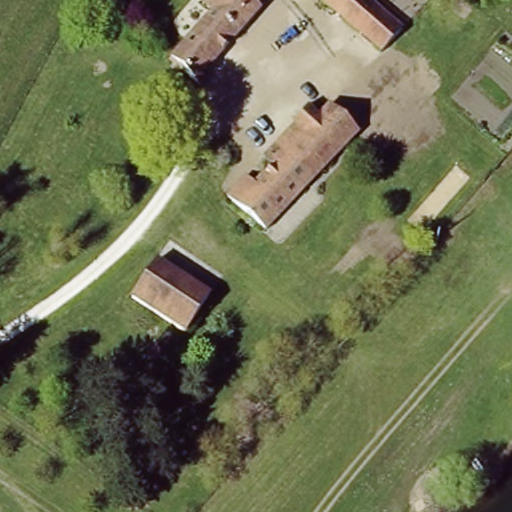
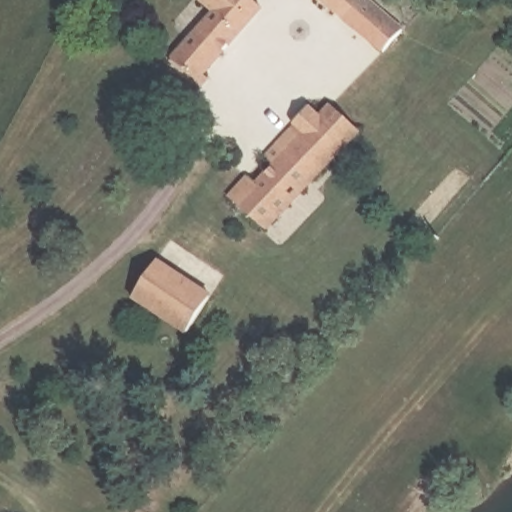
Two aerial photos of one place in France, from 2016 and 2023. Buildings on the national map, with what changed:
unchanged [(247,0),(251,4),(192,69),(198,74),(192,80),(162,54),(210,0),(247,0)]
unchanged [(382,51),(322,0),(368,0),(402,29),(382,51)]
unchanged [(230,199),(248,177),(258,186),(277,165),(269,157),(300,123),(297,121),(310,106),(319,115),(330,102),(360,130),(267,233),(230,199)]
unchanged [(133,295),(157,260),(211,296),(186,331),(133,295)]

